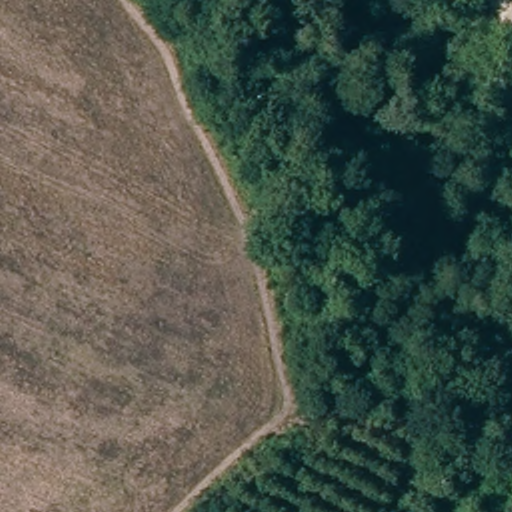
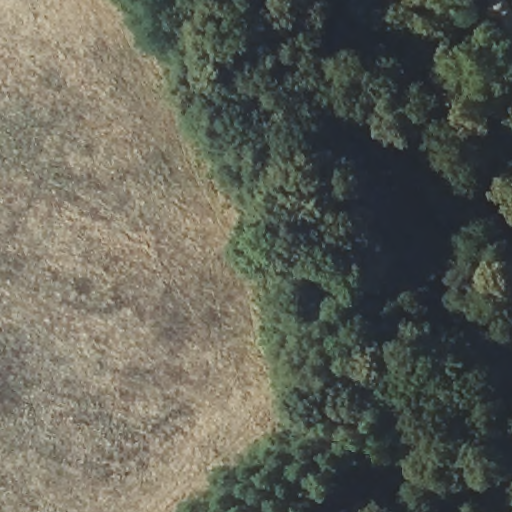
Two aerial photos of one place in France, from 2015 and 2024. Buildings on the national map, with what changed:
[]

